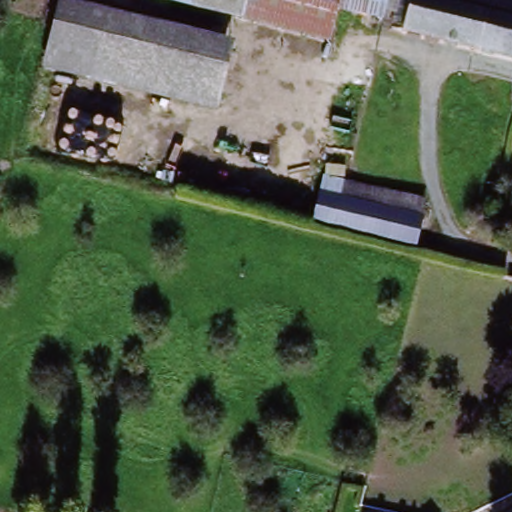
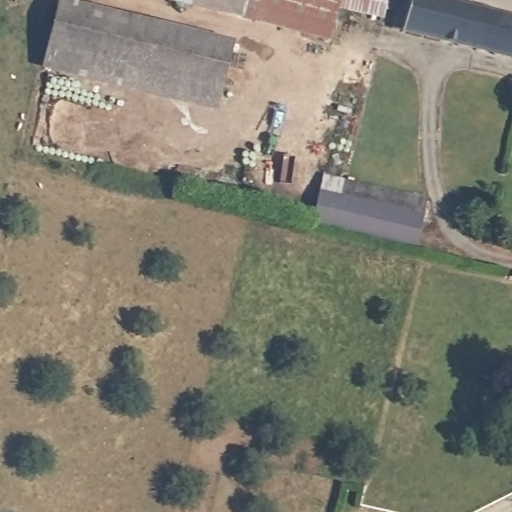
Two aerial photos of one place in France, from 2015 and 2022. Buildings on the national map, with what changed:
unchanged [(46,69),(62,0),(232,44),(217,111),(46,69)]
unchanged [(246,0),(341,0),(332,45),(157,0),(192,0),(242,13),(246,0)]
unchanged [(192,0),(246,0),(242,13),(192,0)]
unchanged [(346,0),(391,0),(389,10),(346,0)]
unchanged [(512,54),(510,61),(397,30),(404,0),(419,0),(512,23),(512,54)]
unchanged [(512,54),(512,62),(510,61),(512,54)]
unchanged [(423,204),(413,249),(312,226),(325,180),(423,204)]

